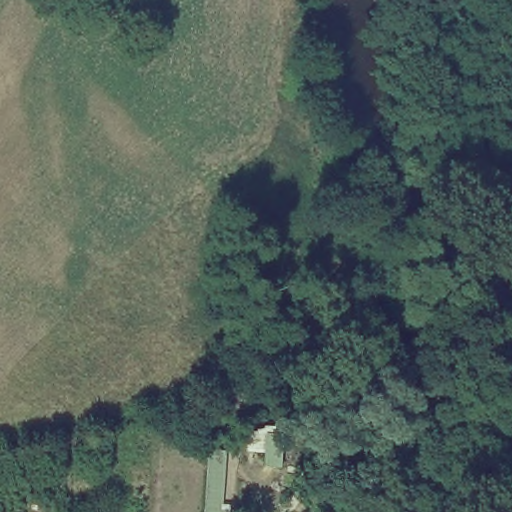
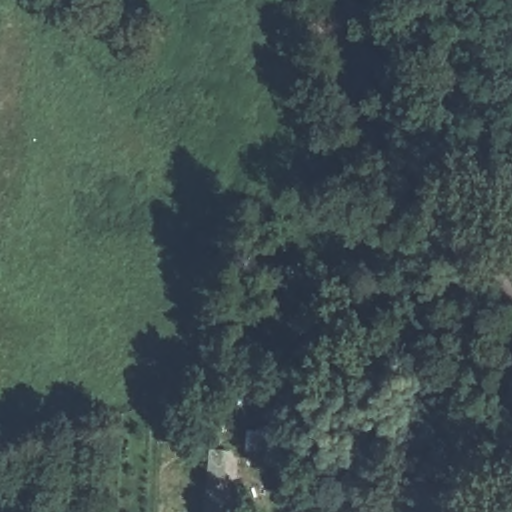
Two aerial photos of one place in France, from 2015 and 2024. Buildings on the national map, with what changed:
unchanged [(230,461),(224,512),(201,512),(205,462),(230,461)]

